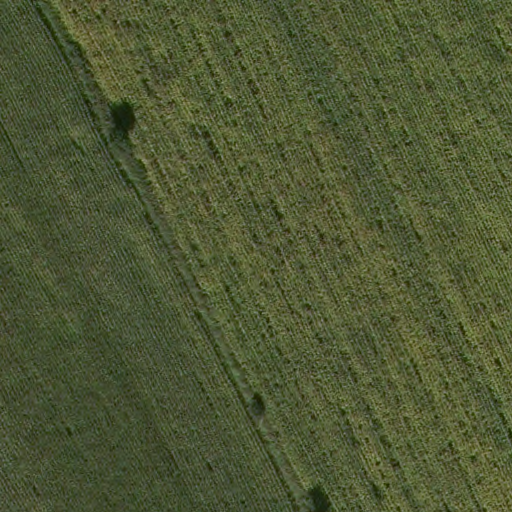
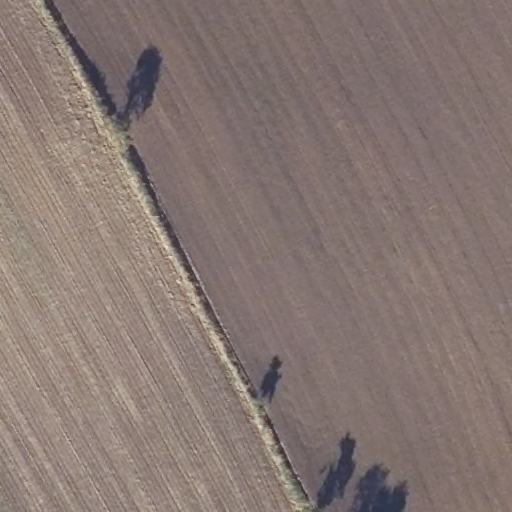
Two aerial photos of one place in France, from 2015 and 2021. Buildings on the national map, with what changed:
[]

